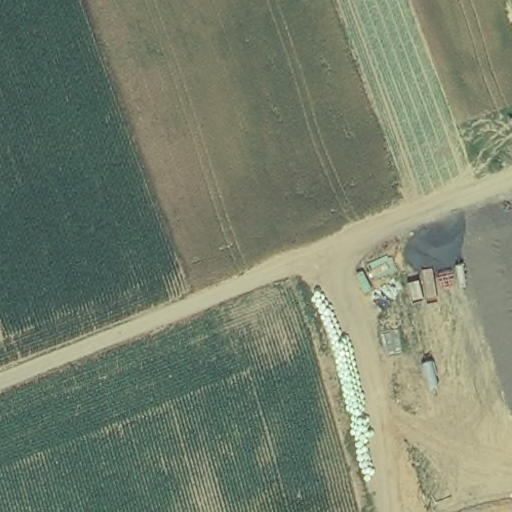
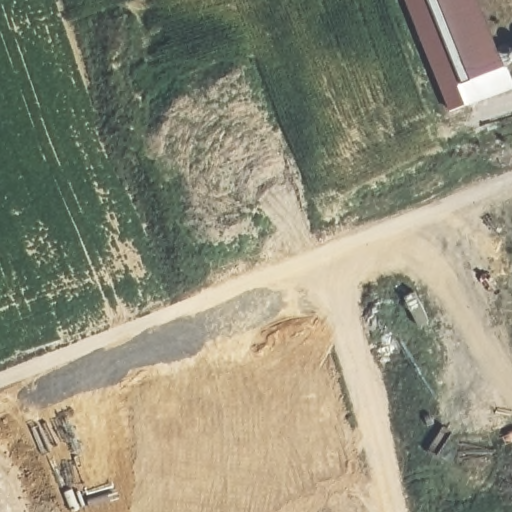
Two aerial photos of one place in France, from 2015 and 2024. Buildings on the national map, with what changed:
new [(441,94),(406,0),(477,0),(506,68),(441,94)]

